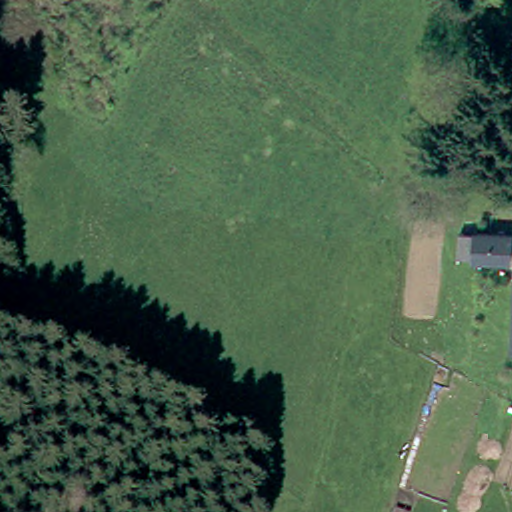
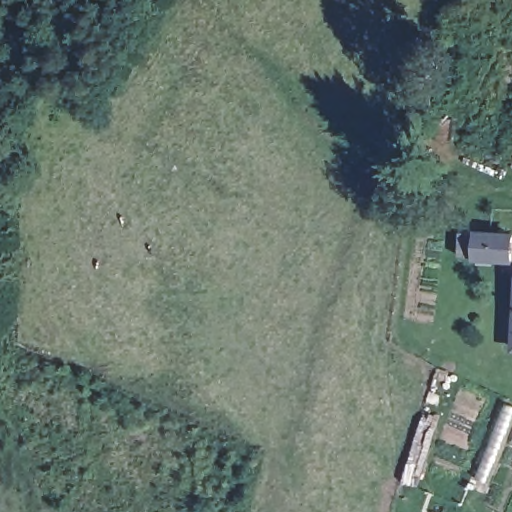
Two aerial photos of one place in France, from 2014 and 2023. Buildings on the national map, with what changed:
unchanged [(506,259),(470,254),(471,224),(508,229),(506,259)]

